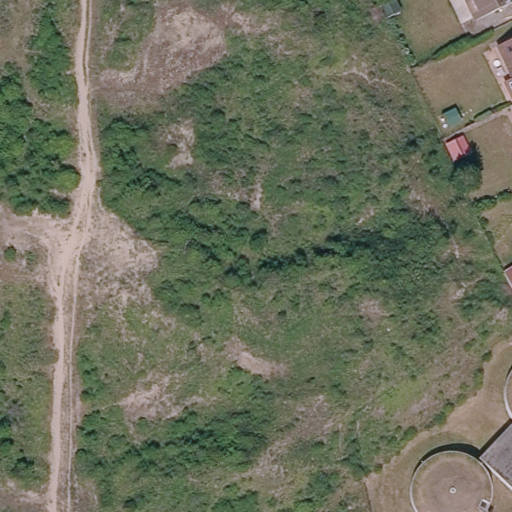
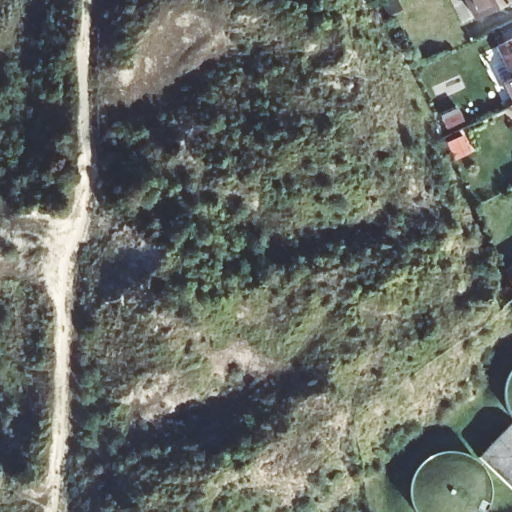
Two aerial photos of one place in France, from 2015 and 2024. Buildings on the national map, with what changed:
unchanged [(475,20),(466,0),(512,0),(512,2),(475,20)]
unchanged [(497,55),(490,41),(512,30),(512,84),(497,55)]
unchanged [(479,453),(512,420),(512,486),(479,453)]

